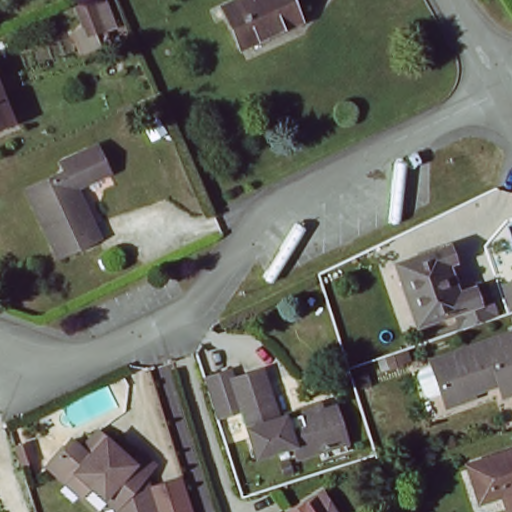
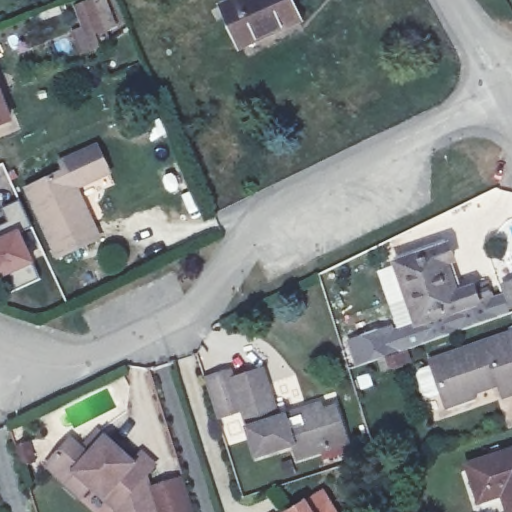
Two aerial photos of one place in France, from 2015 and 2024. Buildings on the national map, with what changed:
unchanged [(300,18),(242,46),(225,7),(240,0),(291,0),(300,18)]
unchanged [(100,28),(84,35),(74,9),(90,3),(100,28)]
unchanged [(0,124),(0,88),(13,119),(0,124)]
unchanged [(111,175),(80,189),(101,238),(60,257),(29,190),(66,173),(63,165),(100,149),(111,175)]
new [(40,279),(15,290),(10,278),(0,283),(0,237),(20,228),(40,279)]
unchanged [(459,259),(470,290),(493,281),(498,295),(423,322),(402,263),(454,245),(459,259)]
unchanged [(451,406),(449,401),(436,361),(512,334),(512,397),(507,398),(501,382),(475,391),(477,398),(451,406)]
unchanged [(386,356),(400,351),(408,348),(411,358),(403,361),(390,366),(386,356)]
unchanged [(303,456),(299,443),(261,455),(247,414),(225,421),(212,378),(233,371),(235,378),(267,368),(273,383),(277,396),(284,417),(290,415),(326,404),(328,410),(340,406),(348,429),(352,440),(338,445),(303,456)]
unchanged [(50,465),(70,442),(80,451),(100,431),(106,437),(135,462),(143,451),(157,461),(146,474),(159,512),(120,512),(118,505),(93,484),(83,495),(70,483),(50,465)]
unchanged [(470,465),(512,451),(512,512),(506,494),(482,502),(480,495),(470,465)]
unchanged [(159,512),(150,486),(182,477),(192,512),(159,512)]
unchanged [(303,512),(326,497),(336,512),(303,512)]

